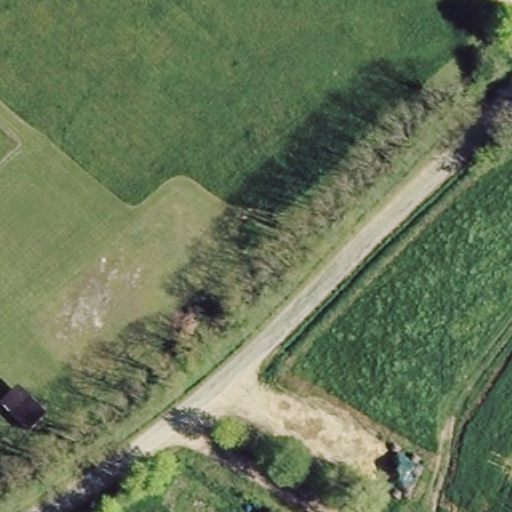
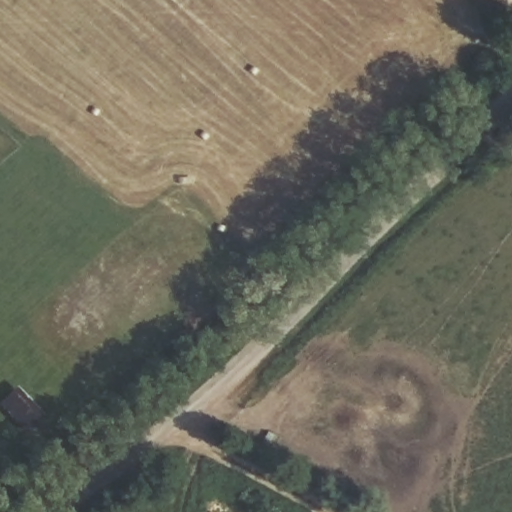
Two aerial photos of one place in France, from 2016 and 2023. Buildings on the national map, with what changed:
unchanged [(45,415),(30,428),(2,395),(18,381),(45,415)]

